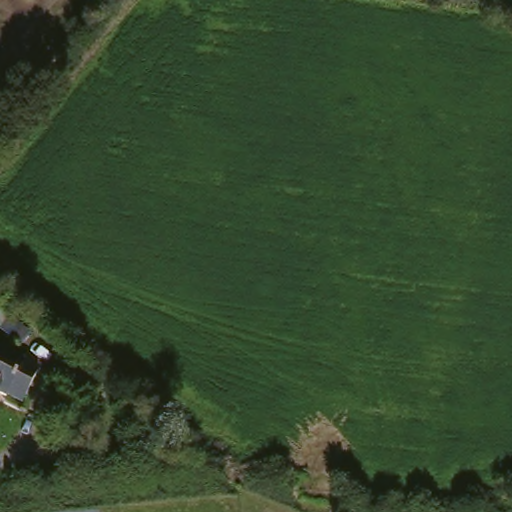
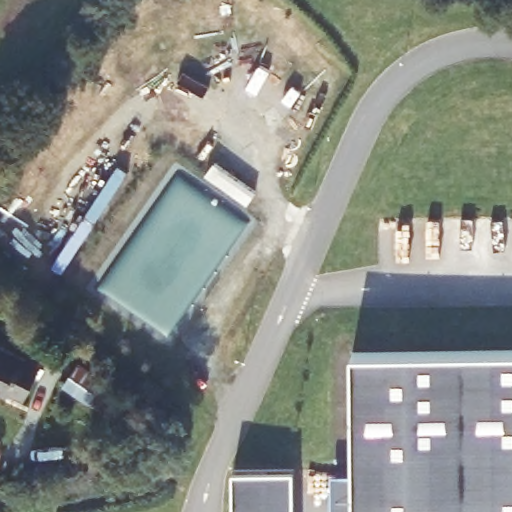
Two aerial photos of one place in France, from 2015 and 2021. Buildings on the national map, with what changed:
new [(512,350),(512,512),(355,512),(353,351),(512,350)]
unchanged [(34,367),(16,400),(3,393),(1,395),(0,395),(0,351),(34,367)]
unchanged [(60,351),(99,380),(84,399),(45,370),(60,351)]
new [(294,512),(233,512),(232,468),(293,468),(294,512)]

